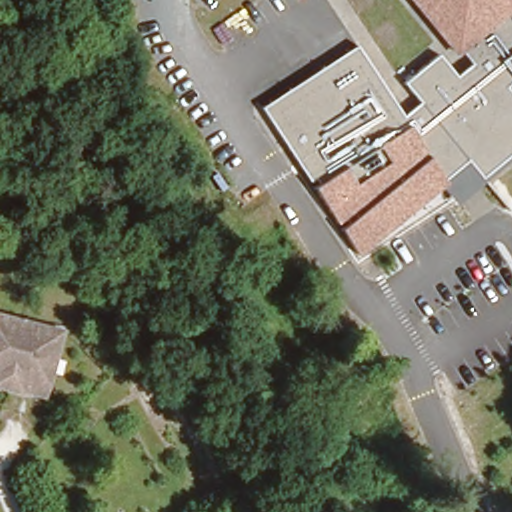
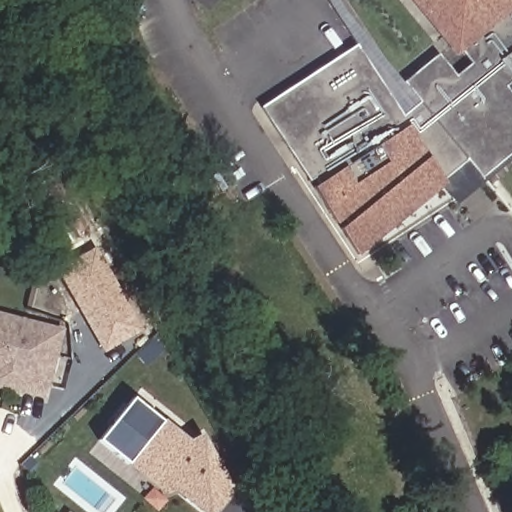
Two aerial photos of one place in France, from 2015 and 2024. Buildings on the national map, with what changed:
unchanged [(404,84),(439,55),(457,76),(473,64),(463,51),(455,58),(409,0),(512,0),(512,161),(459,205),(445,188),(362,253),(343,229),(316,188),(264,105),(358,46),(405,116),(421,104),(404,84)]
new [(143,331),(110,351),(105,349),(60,272),(95,249),(143,331)]
unchanged [(16,391),(0,387),(0,315),(52,329),(41,385),(40,396),(16,391)]
new [(161,422),(165,419),(242,481),(218,512),(201,512),(174,490),(169,496),(100,442),(133,399),(161,422)]

